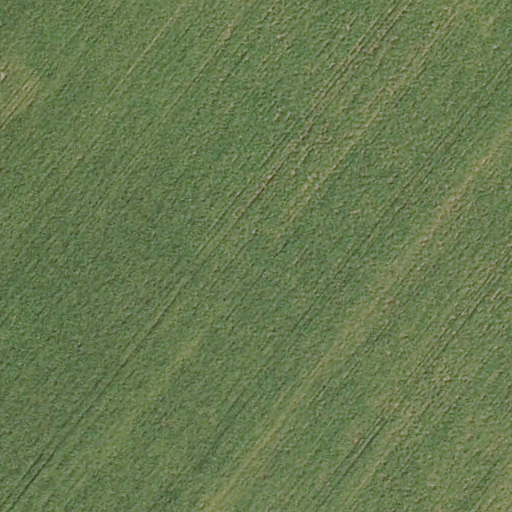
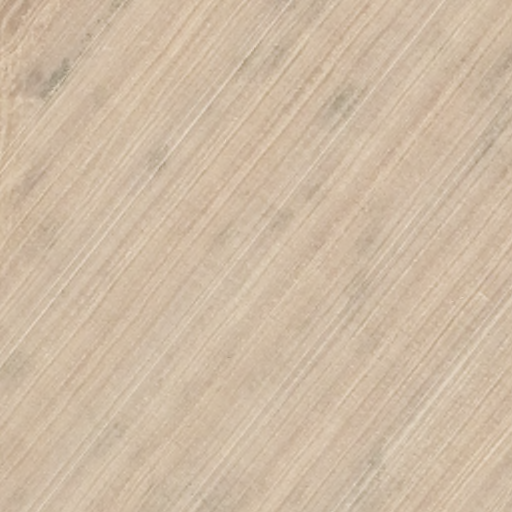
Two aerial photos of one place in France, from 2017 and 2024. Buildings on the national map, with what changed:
[]

